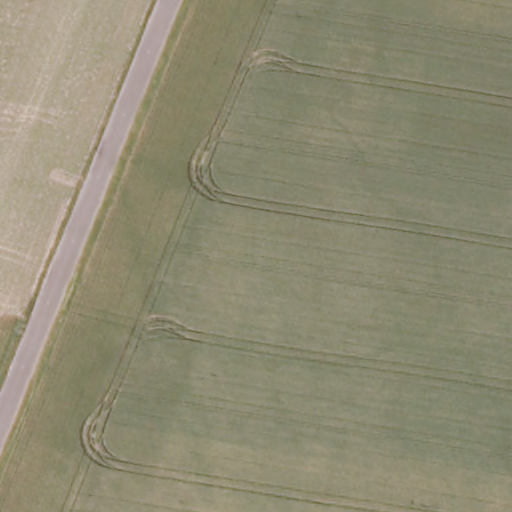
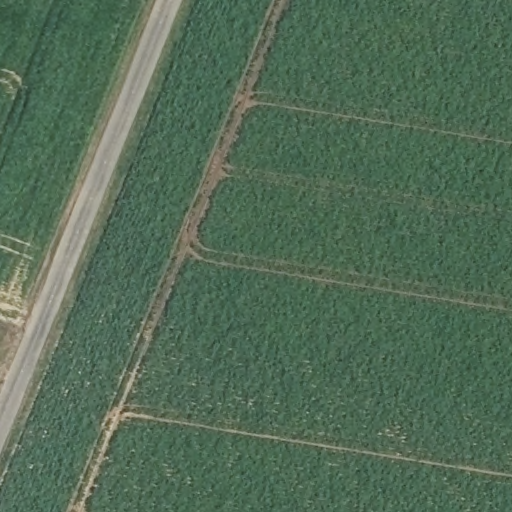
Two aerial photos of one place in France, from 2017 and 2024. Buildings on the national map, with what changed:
[]

